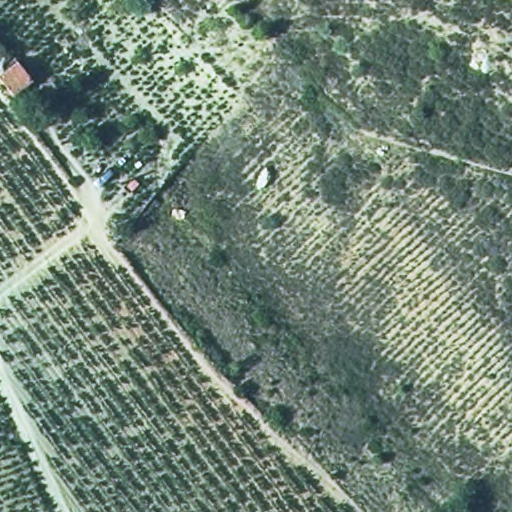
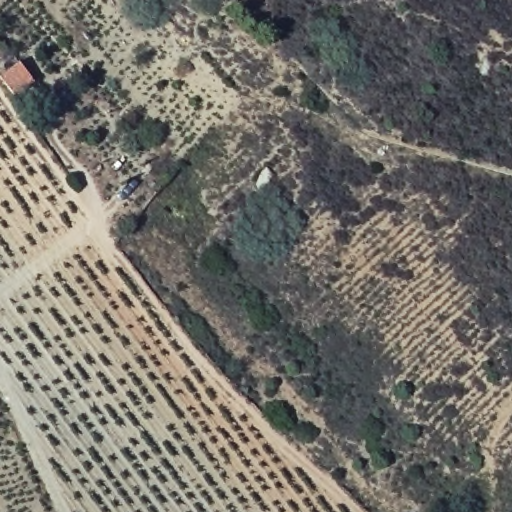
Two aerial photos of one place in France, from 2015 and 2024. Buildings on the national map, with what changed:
unchanged [(0,69),(20,56),(36,82),(14,95),(0,74),(0,69)]

